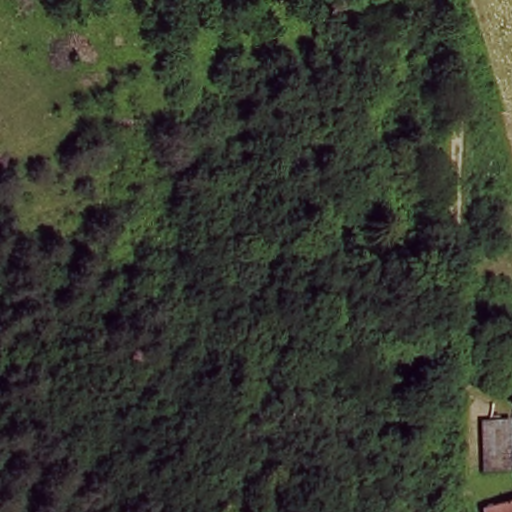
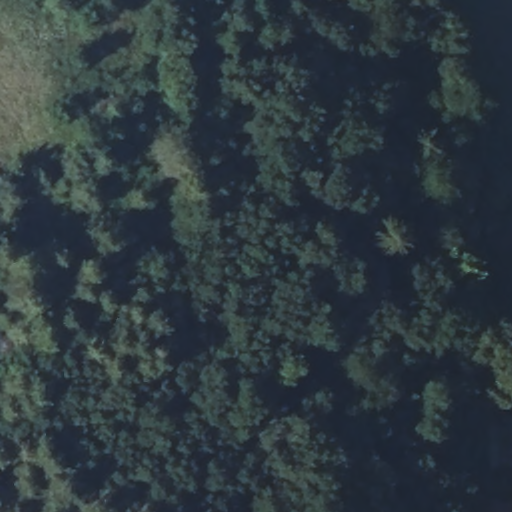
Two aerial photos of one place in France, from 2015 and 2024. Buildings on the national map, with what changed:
unchanged [(356,251),(372,244),(378,266),(363,272),(356,251)]
unchanged [(512,458),(484,460),(485,417),(512,419),(512,458)]
unchanged [(512,512),(491,512),(490,508),(512,503),(512,512)]

